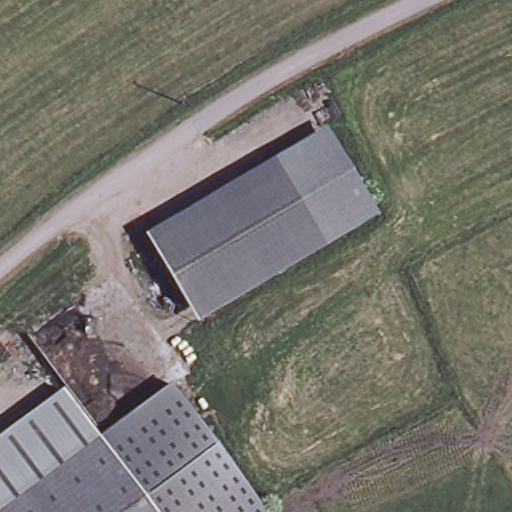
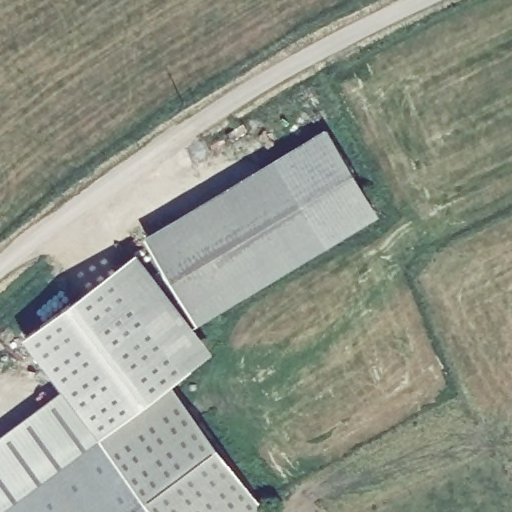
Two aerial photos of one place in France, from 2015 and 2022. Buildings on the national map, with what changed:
unchanged [(201,322),(149,235),(330,129),(381,215),(201,322)]
new [(25,336),(138,250),(215,350),(172,384),(180,395),(110,450),(74,404),(0,462),(0,437),(65,389),(25,336)]
unchanged [(180,395),(273,512),(158,512),(110,450),(180,395)]
unchanged [(0,462),(74,404),(110,450),(33,512),(0,512),(0,462)]
unchanged [(110,450),(158,512),(33,512),(110,450)]

